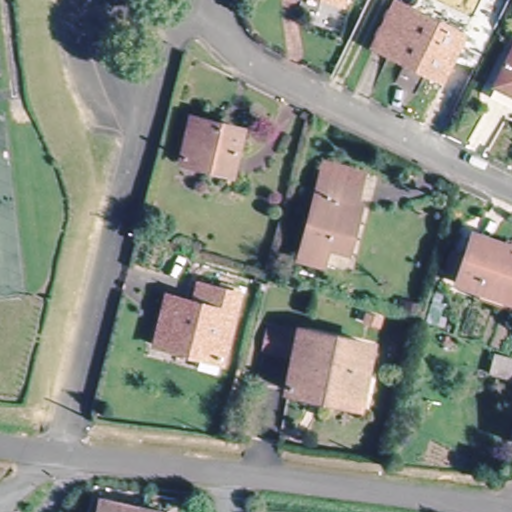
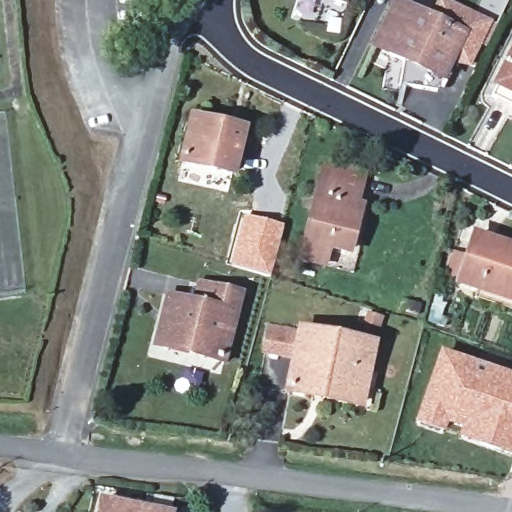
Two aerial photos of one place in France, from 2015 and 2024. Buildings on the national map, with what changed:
unchanged [(312,0),(346,0),(345,7),(312,0)]
unchanged [(395,10),(438,30),(447,11),(468,21),(438,86),(373,56),(395,10)]
unchanged [(512,56),(512,109),(491,99),(512,56)]
unchanged [(244,137),(234,180),(184,167),(194,125),(244,137)]
unchanged [(361,172),(357,195),(362,196),(343,254),(302,242),(321,162),(361,172)]
new [(242,214),(284,224),(269,277),(227,263),(242,214)]
unchanged [(481,287),(461,280),(477,238),(512,251),(512,300),(509,310),(477,298),(481,287)]
unchanged [(163,327),(169,308),(190,313),(195,298),(210,301),(242,310),(224,377),(166,361),(155,360),(163,327)]
unchanged [(315,401),(287,396),(301,335),(372,351),(362,397),(357,412),(315,401)]
new [(512,460),(457,442),(462,430),(447,425),(443,437),(413,425),(440,351),(512,376),(512,460)]
demolished [(512,377),(511,382),(490,376),(495,360),(512,366),(512,377)]
demolished [(512,446),(512,454),(510,453),(512,446)]
unchanged [(148,512),(98,512),(101,501),(148,512)]

